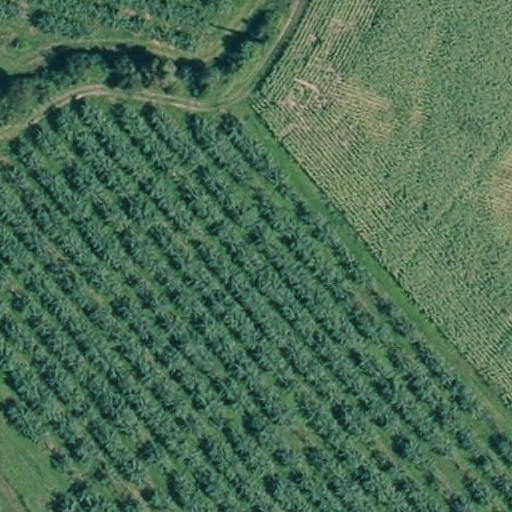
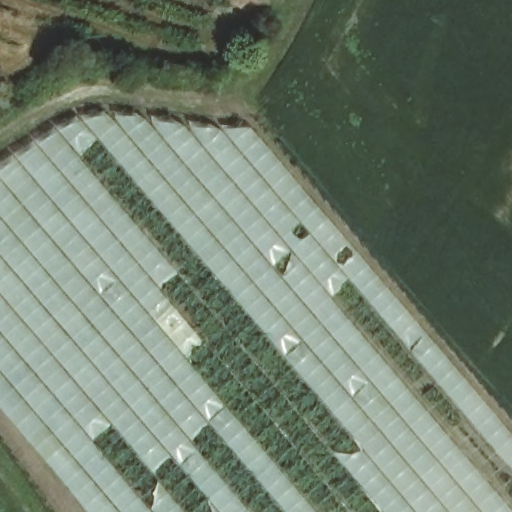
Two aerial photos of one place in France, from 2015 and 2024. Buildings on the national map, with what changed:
new [(0,165),(75,116),(115,111),(253,126),(512,432),(512,512),(89,512),(0,407),(0,165)]

